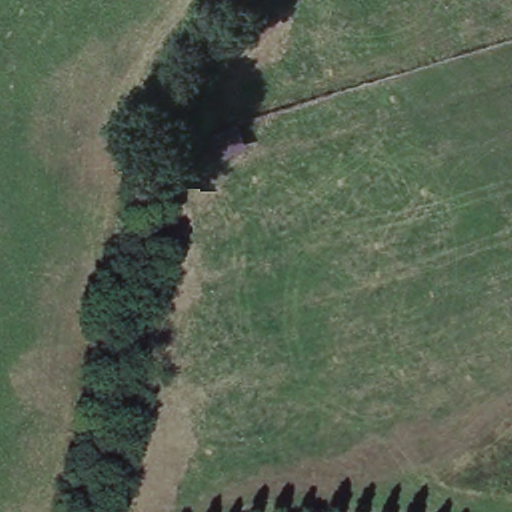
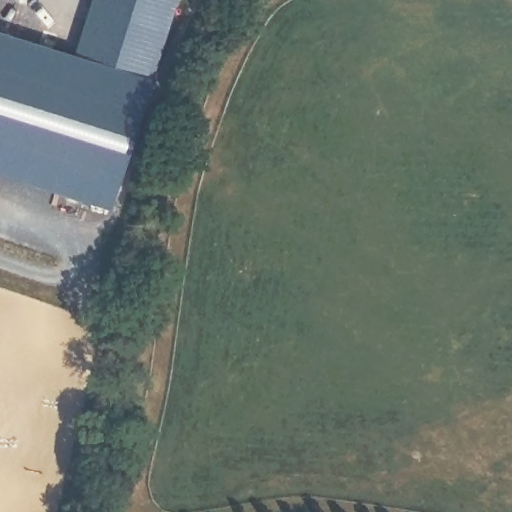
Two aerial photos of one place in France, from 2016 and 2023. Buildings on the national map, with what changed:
new [(0,185),(0,37),(76,59),(93,0),(179,0),(110,218),(0,185)]

